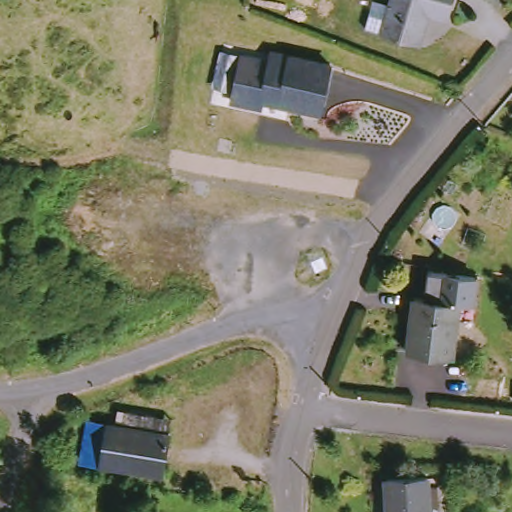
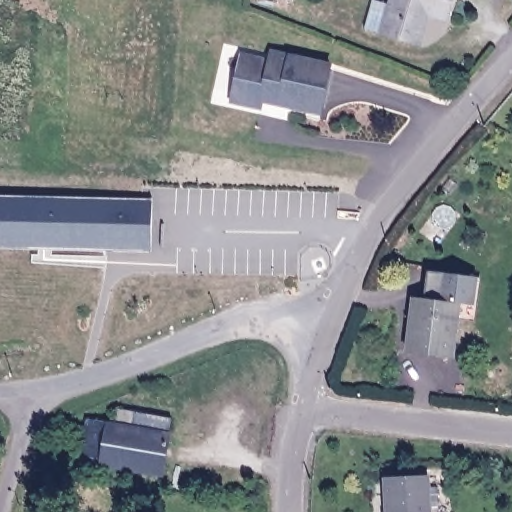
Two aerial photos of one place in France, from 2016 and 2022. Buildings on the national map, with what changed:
unchanged [(459,0),(453,19),(432,14),(425,44),(388,34),(398,0),(459,0)]
unchanged [(245,51),(252,53),(273,57),(275,49),(335,61),(325,109),(277,100),(277,96),(267,94),(265,105),(235,99),(240,76),(245,51)]
new [(152,199),(152,252),(0,247),(0,194),(152,199)]
unchanged [(425,300),(434,301),(436,275),(480,277),(480,304),(467,304),(464,359),(422,357),(425,300)]
unchanged [(180,423),(177,435),(170,475),(92,459),(99,422),(132,429),(135,415),(147,416),(164,420),(180,423)]
unchanged [(435,512),(395,512),(393,479),(433,477),(435,512)]

